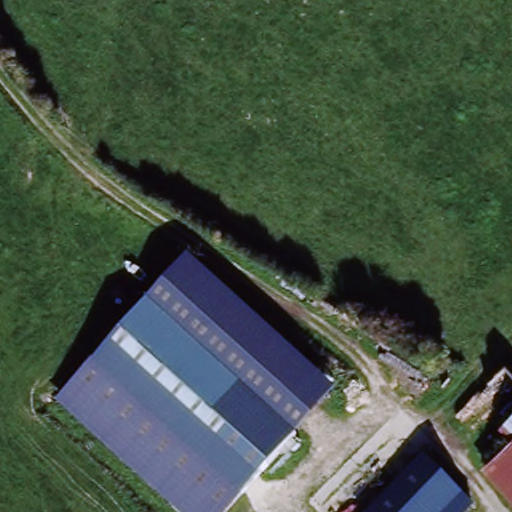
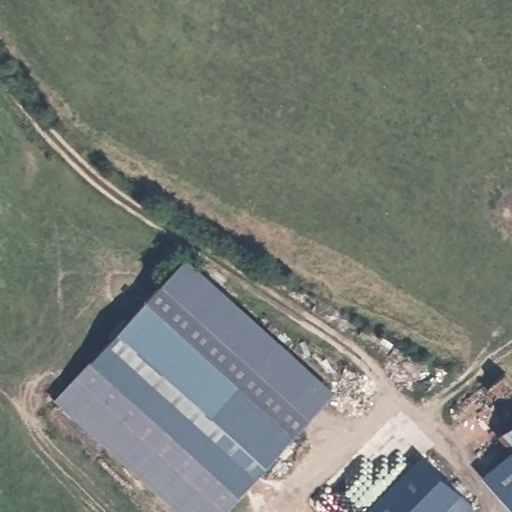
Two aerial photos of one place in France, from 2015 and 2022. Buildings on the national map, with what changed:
unchanged [(292,443),(152,299),(187,264),(329,409),(292,443)]
unchanged [(222,512),(178,512),(57,389),(152,299),(292,443),(222,512)]
unchanged [(512,415),(512,449),(509,446),(495,430),(512,415)]
unchanged [(509,446),(512,449),(512,501),(483,470),(509,446)]
unchanged [(455,512),(370,512),(402,482),(408,483),(431,463),(467,502),(455,512)]
unchanged [(477,512),(455,512),(467,502),(477,512)]

